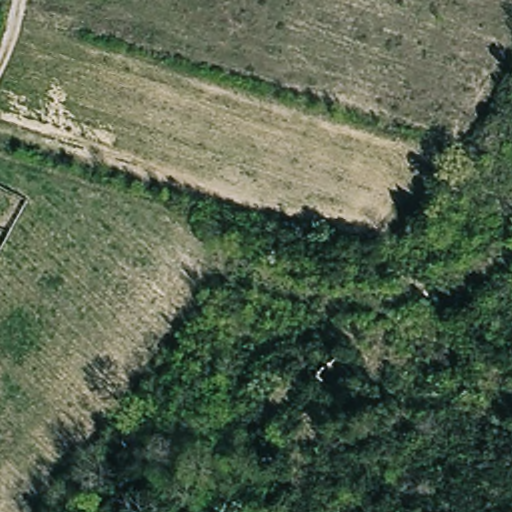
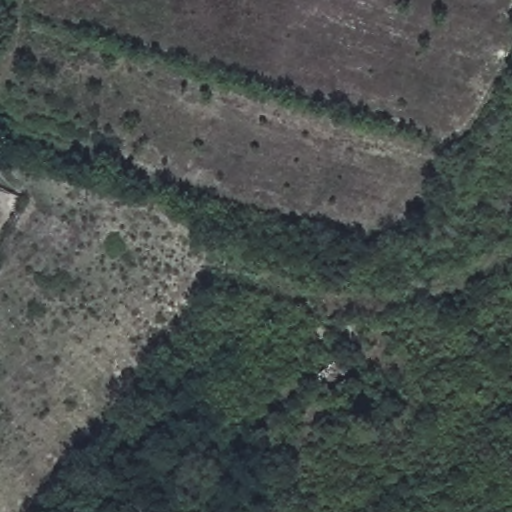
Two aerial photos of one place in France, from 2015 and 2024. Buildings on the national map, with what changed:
[]

